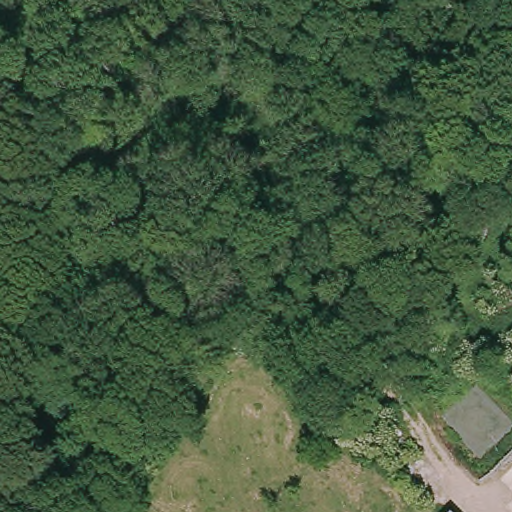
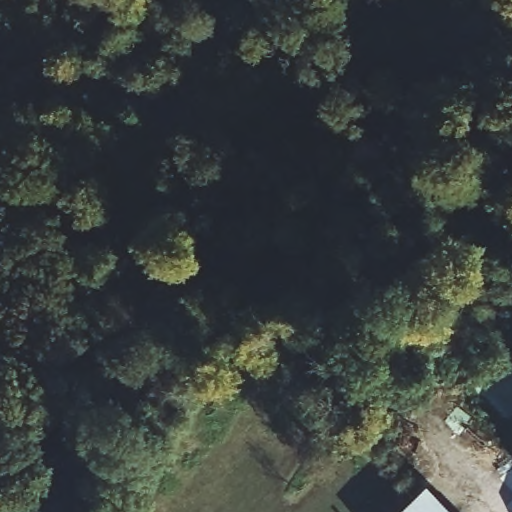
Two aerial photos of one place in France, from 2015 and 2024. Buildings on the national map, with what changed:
new [(451,512),(397,512),(428,482),(453,510),(451,512)]
unchanged [(455,512),(451,512),(453,510),(455,512)]

